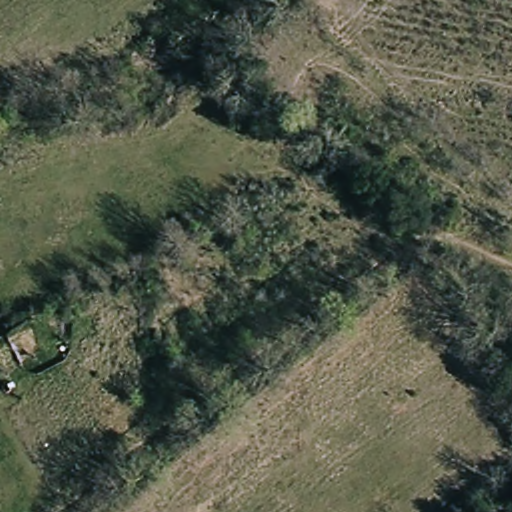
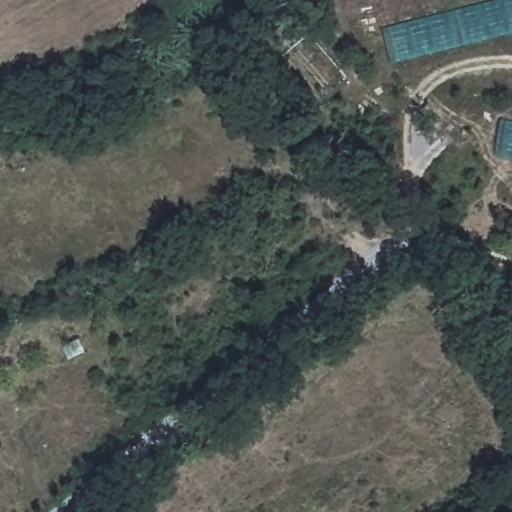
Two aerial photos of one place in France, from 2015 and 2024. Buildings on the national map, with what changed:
new [(512,0),(512,31),(391,64),(381,29),(496,0),(512,0)]
new [(512,158),(495,155),(501,120),(512,122),(512,158)]

